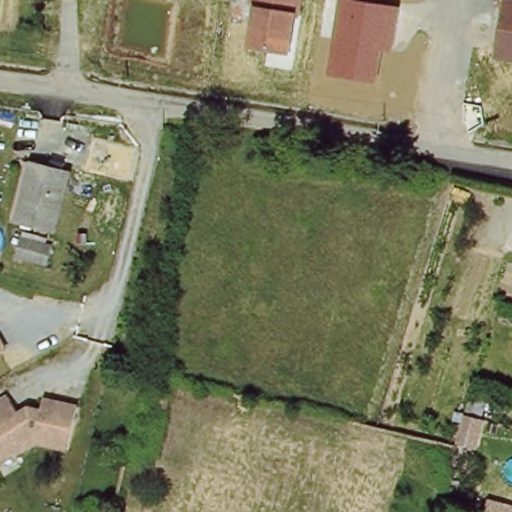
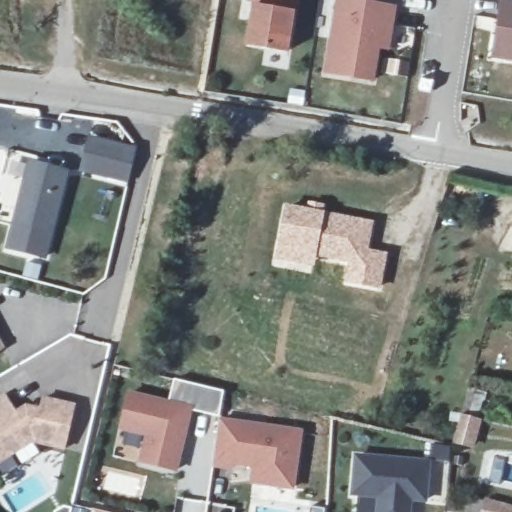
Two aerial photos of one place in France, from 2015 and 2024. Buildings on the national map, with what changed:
unchanged [(296,19),(290,56),(247,48),(253,6),(249,5),(250,0),(303,0),(300,19),(296,19)]
unchanged [(359,0),(398,6),(392,51),(382,50),(376,82),(327,75),(339,0),(359,0)]
unchanged [(503,0),(512,0),(512,61),(494,58),(503,0)]
new [(90,141),(136,151),(129,182),(83,172),(90,141)]
unchanged [(67,172),(53,228),(17,218),(32,161),(67,172)]
new [(287,206),(326,214),(376,223),(370,251),(388,254),(382,290),(346,284),(349,264),(318,256),(315,268),(276,260),(287,206)]
unchanged [(54,242),(48,263),(20,255),(25,234),(54,242)]
unchanged [(10,351),(0,355),(0,331),(10,351)]
new [(175,382),(225,394),(222,420),(195,413),(169,407),(175,382)]
unchanged [(0,396),(12,411),(23,405),(38,406),(41,394),(78,403),(65,454),(40,446),(18,456),(25,469),(3,481),(0,476),(0,396)]
new [(133,398),(169,407),(195,413),(180,474),(145,466),(152,439),(125,432),(133,398)]
new [(236,467),(236,472),(217,469),(223,424),(304,436),(296,492),(263,487),(256,486),(259,470),(236,467)]
new [(431,462),(427,504),(412,504),(411,512),(376,512),(378,499),(350,498),(354,456),(431,462)]
unchanged [(512,511),(512,512),(484,512),(487,504),(512,511)]

